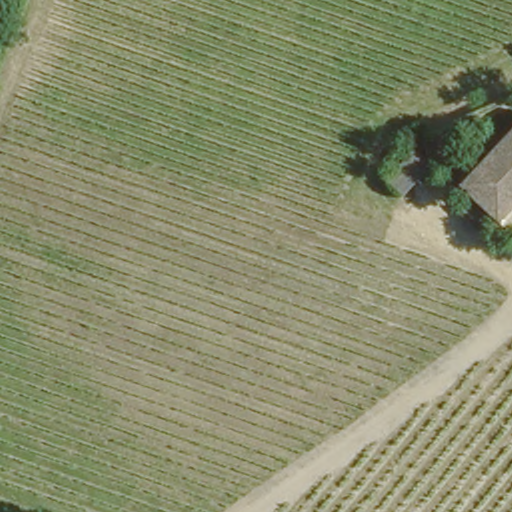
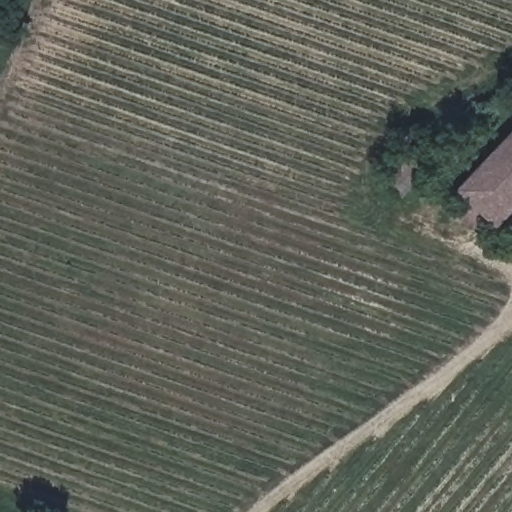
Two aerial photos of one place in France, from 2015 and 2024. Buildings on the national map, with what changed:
unchanged [(461,178),(486,150),(512,120),(512,199),(499,213),(461,178)]
unchanged [(380,169),(412,138),(432,160),(398,192),(380,169)]
unchanged [(473,310),(480,293),(501,302),(495,318),(473,310)]

